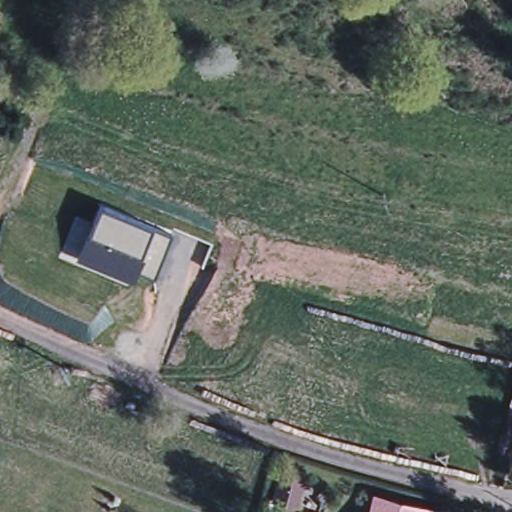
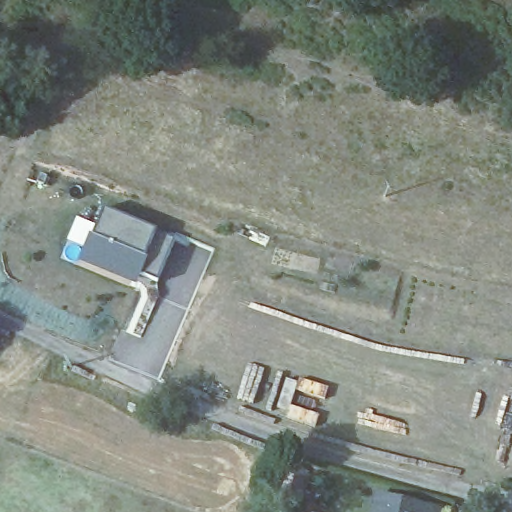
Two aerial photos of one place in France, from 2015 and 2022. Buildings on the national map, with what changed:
unchanged [(159,279),(140,271),(135,286),(81,264),(100,211),(174,240),(159,279)]
unchanged [(272,499),(272,496),(280,466),(307,473),(297,505),(272,499)]
unchanged [(429,510),(429,512),(365,512),(371,493),(429,510)]

